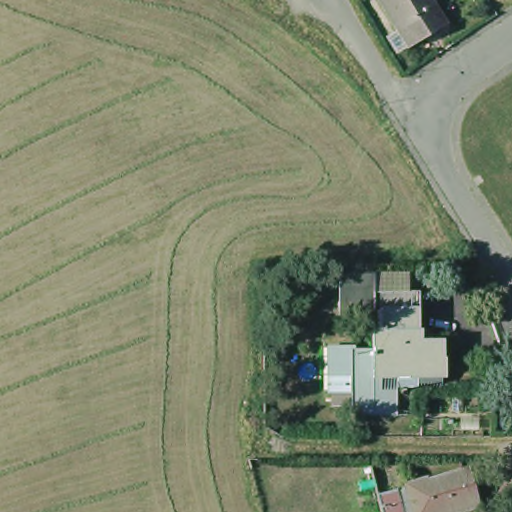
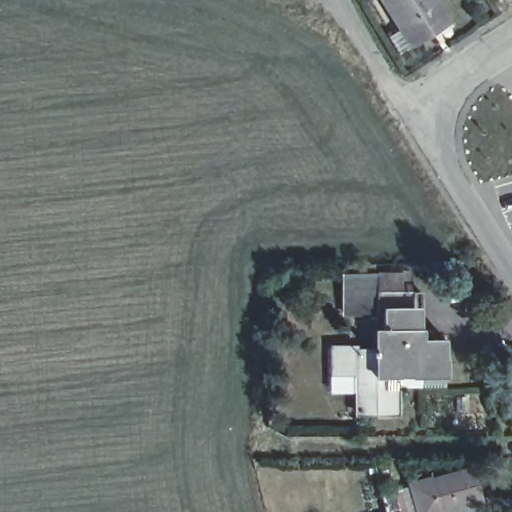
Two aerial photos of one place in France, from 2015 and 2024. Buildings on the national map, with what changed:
unchanged [(378,0),(428,0),(445,27),(409,49),(378,0)]
unchanged [(380,312),(374,312),(373,294),(417,293),(417,331),(381,331),(380,312)]
unchanged [(352,393),(352,389),(325,390),(325,376),(325,348),(356,348),(357,354),(373,354),(373,331),(381,331),(417,331),(419,331),(419,342),(443,342),(442,379),(394,379),(394,392),(394,416),(352,416),(352,393)]
unchanged [(407,483),(420,480),(419,477),(468,463),(478,500),(447,508),(446,506),(427,510),(428,512),(395,512),(389,486),(407,482),(407,483)]

